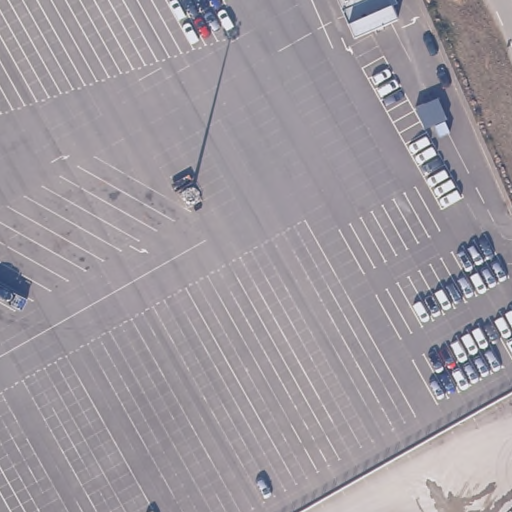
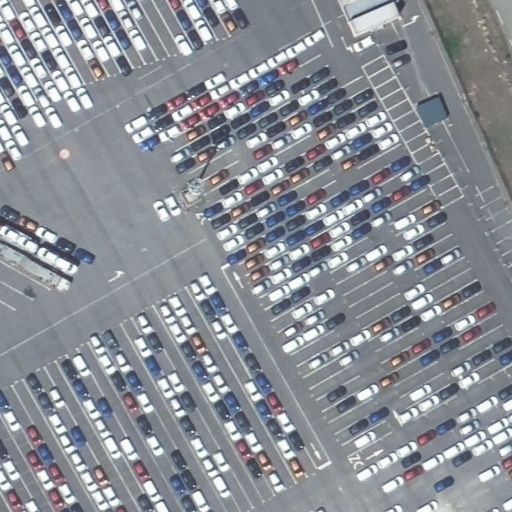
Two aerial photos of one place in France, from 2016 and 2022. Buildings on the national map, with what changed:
unchanged [(398,18),(355,36),(340,0),(390,0),(398,18)]

